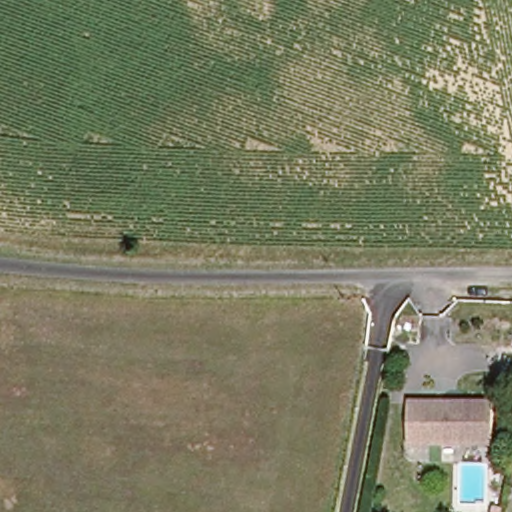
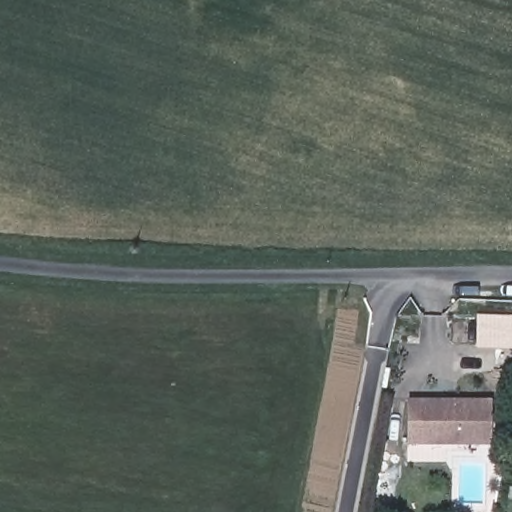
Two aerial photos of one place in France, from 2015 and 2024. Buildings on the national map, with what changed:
new [(477,314),(512,315),(512,349),(476,349),(477,314)]
unchanged [(405,444),(406,404),(490,404),(490,445),(405,444)]

